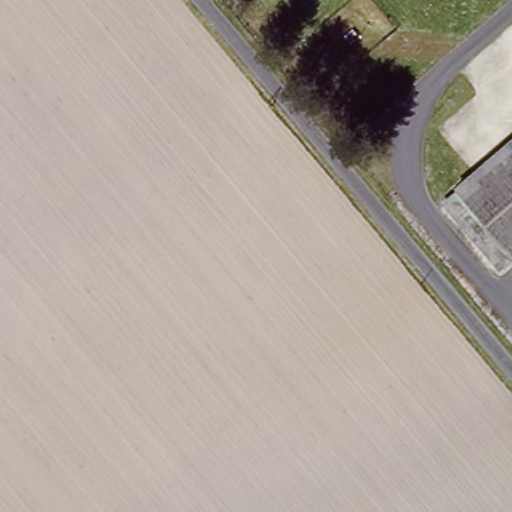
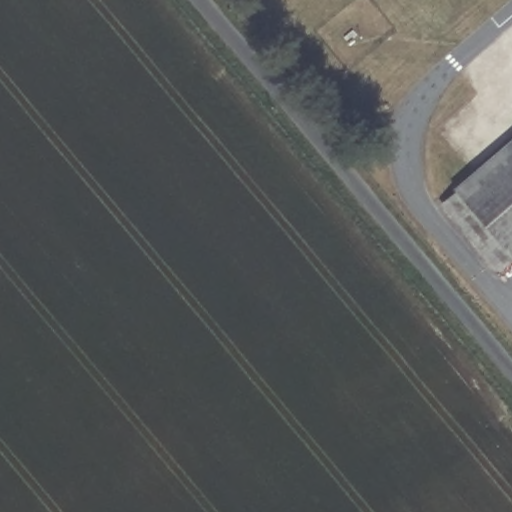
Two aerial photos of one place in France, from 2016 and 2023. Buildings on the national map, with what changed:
unchanged [(491,273),(438,205),(512,143),(512,255),(491,273)]

